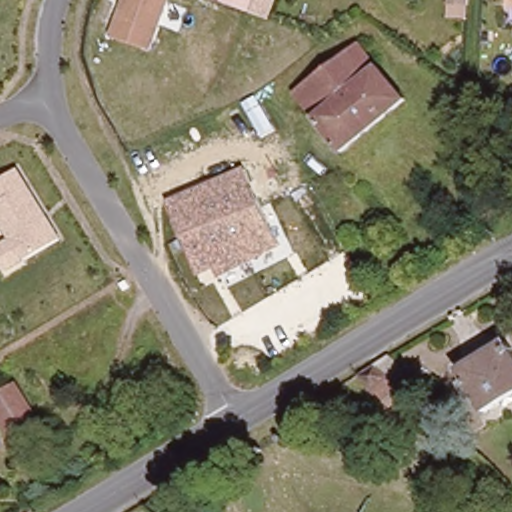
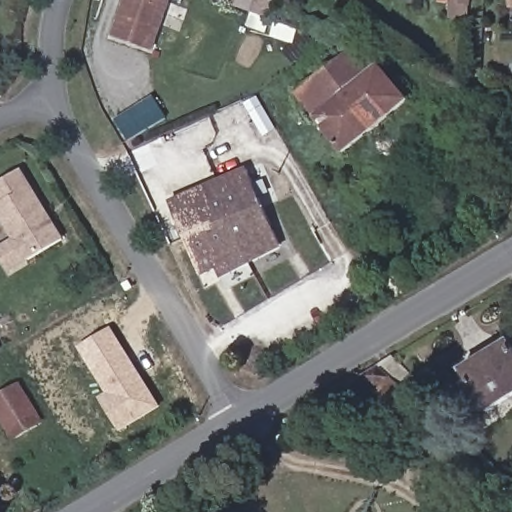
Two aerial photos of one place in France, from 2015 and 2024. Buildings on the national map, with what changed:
unchanged [(157,41),(153,52),(115,38),(124,11),(129,0),(172,0),(157,41)]
unchanged [(270,1),(267,10),(249,3),(250,0),(271,0),(270,1)]
unchanged [(470,19),(449,19),(449,5),(449,0),(470,0),(470,4),(470,19)]
unchanged [(507,0),(512,0),(512,10),(508,10),(507,0)]
unchanged [(293,95),(354,47),(400,97),(338,153),(293,95)]
unchanged [(64,238),(11,272),(0,252),(0,249),(12,241),(0,218),(0,183),(23,170),(64,238)]
unchanged [(214,279),(209,271),(195,278),(166,204),(244,172),(273,248),(214,279)]
unchanged [(123,275),(127,281),(121,284),(117,278),(123,275)]
new [(98,397),(105,393),(77,346),(111,327),(159,406),(119,431),(98,397)]
unchanged [(463,367),(509,341),(512,346),(512,395),(488,409),(463,367)]
unchanged [(386,348),(404,366),(393,376),(399,383),(383,398),(353,368),(373,356),(386,348)]
unchanged [(0,392),(15,383),(38,417),(8,435),(0,422),(0,392)]

